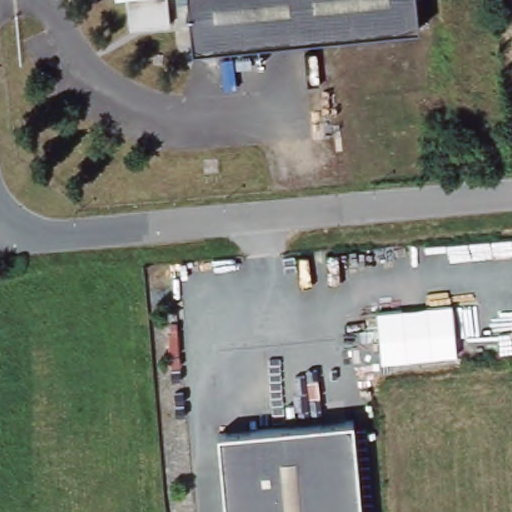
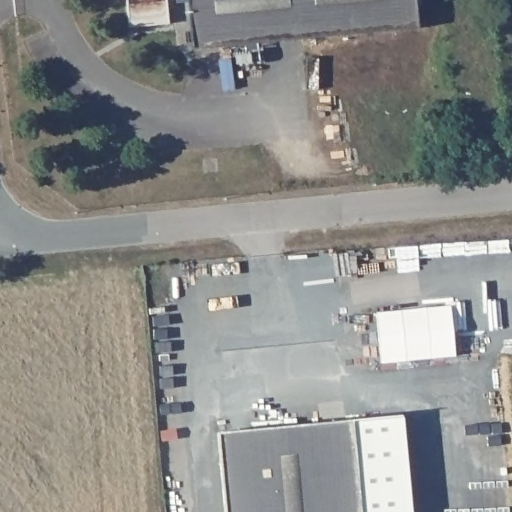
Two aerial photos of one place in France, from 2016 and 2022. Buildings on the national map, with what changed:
unchanged [(170,24),(129,28),(127,0),(167,0),(170,24)]
unchanged [(172,0),(417,0),(419,28),(192,50),(192,45),(176,47),(172,0)]
unchanged [(377,313),(453,305),(458,356),(382,363),(377,313)]
new [(402,414),(412,512),(361,512),(353,420),(402,414)]
unchanged [(353,420),(361,512),(225,512),(217,432),(353,420)]

